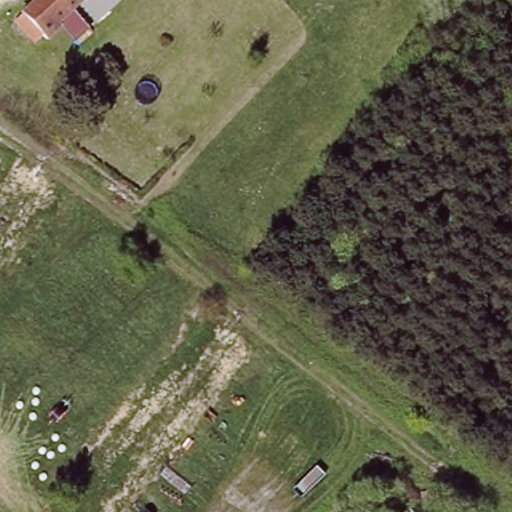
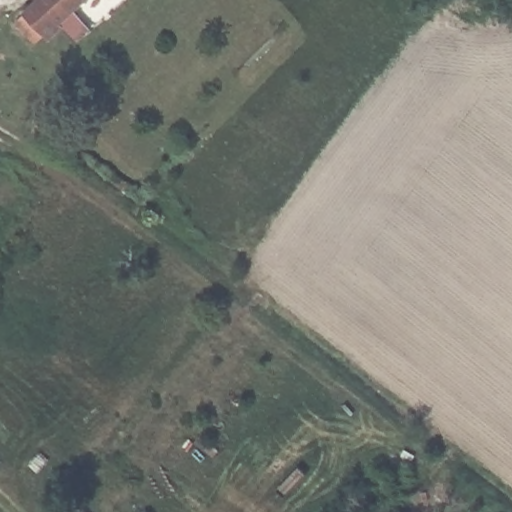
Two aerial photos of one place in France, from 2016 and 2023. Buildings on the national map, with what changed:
unchanged [(36,0),(84,0),(76,7),(83,16),(55,39),(47,31),(40,35),(22,12),(36,0)]

